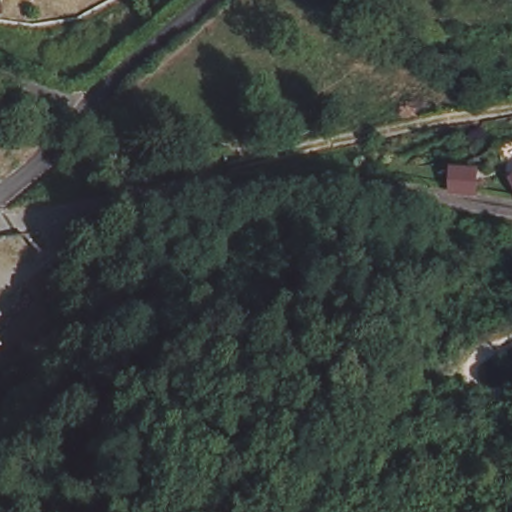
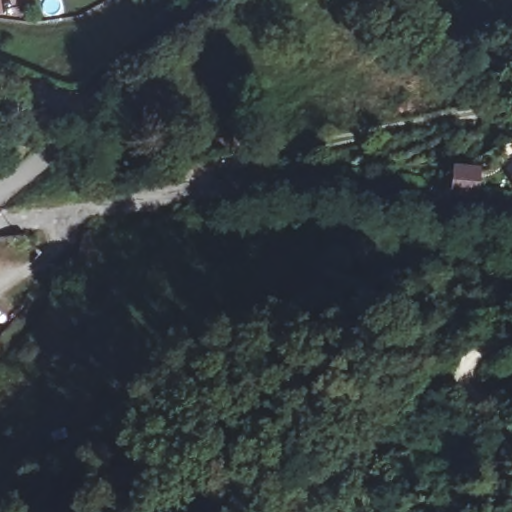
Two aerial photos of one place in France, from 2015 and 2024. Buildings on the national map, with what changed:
unchanged [(5,174),(0,177),(0,162),(5,174)]
unchanged [(445,175),(472,164),(482,187),(458,194),(452,192),(445,175)]

